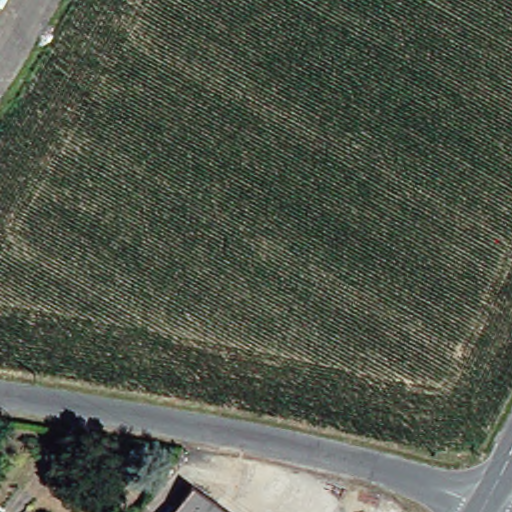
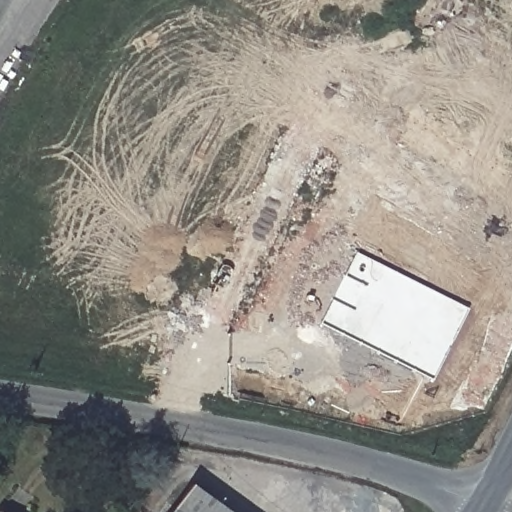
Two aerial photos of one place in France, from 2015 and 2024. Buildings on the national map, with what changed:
new [(432,379),(320,323),(354,252),(469,308),(432,379)]
unchanged [(163,512),(185,480),(229,512),(163,512)]

